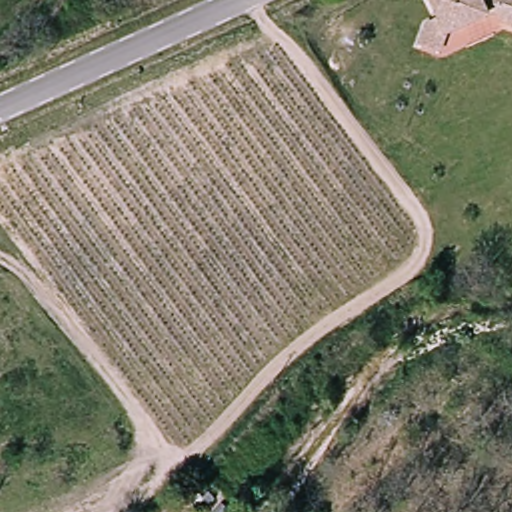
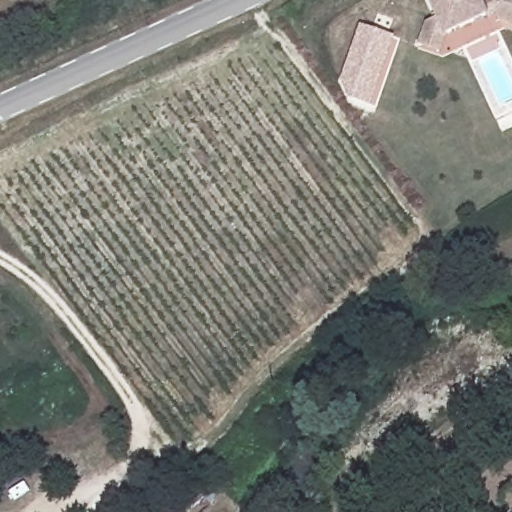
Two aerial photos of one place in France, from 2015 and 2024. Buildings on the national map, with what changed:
unchanged [(429,27),(440,22),(431,0),(481,0),(483,6),(495,0),(512,0),(512,26),(502,23),(498,14),(448,37),(441,56),(421,49),(429,27)]
new [(341,79),(359,26),(396,38),(371,108),(349,99),(341,79)]

